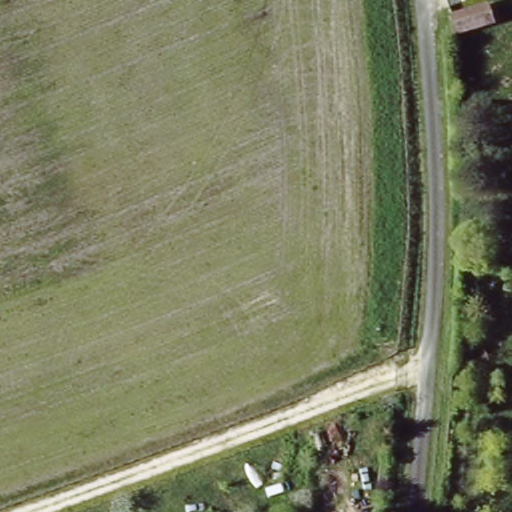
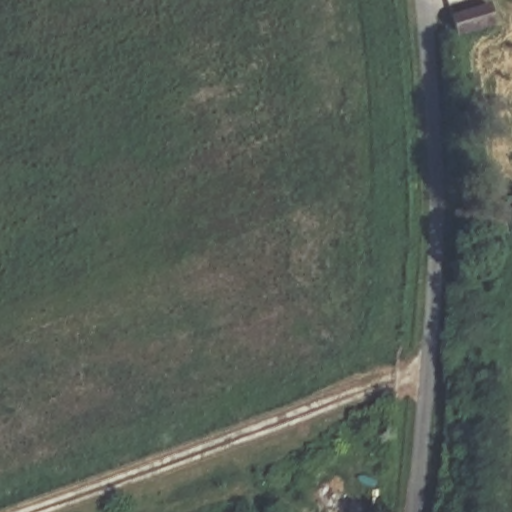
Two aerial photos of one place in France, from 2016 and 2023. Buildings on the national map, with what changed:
unchanged [(500,29),(458,43),(453,12),(493,1),(500,29)]

